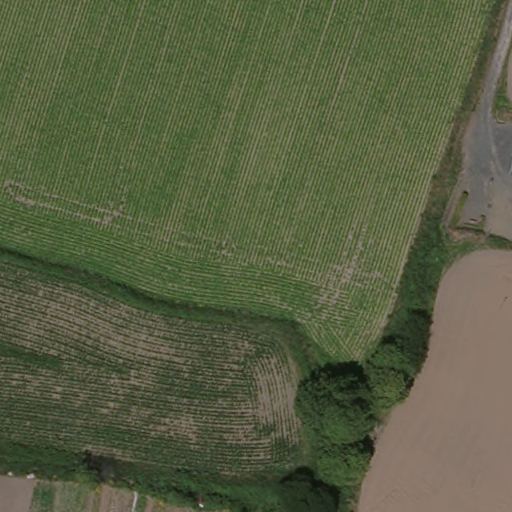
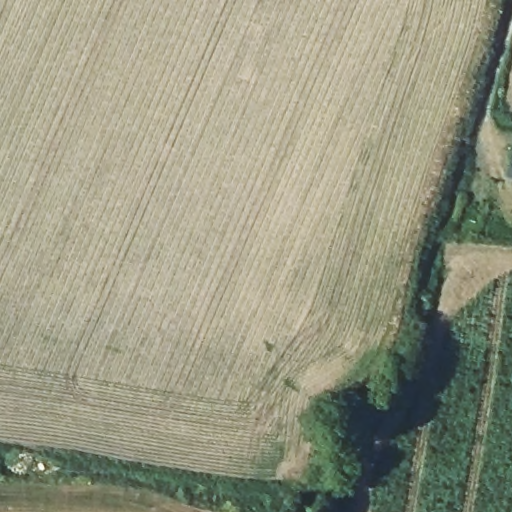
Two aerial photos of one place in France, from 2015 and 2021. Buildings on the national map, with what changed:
unchanged [(512,152),(512,173),(506,170),(512,152)]

